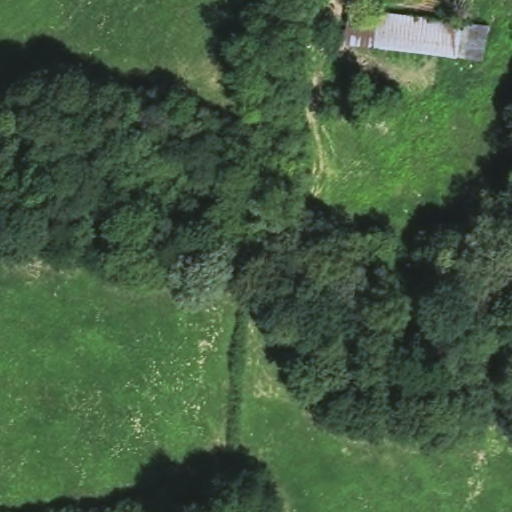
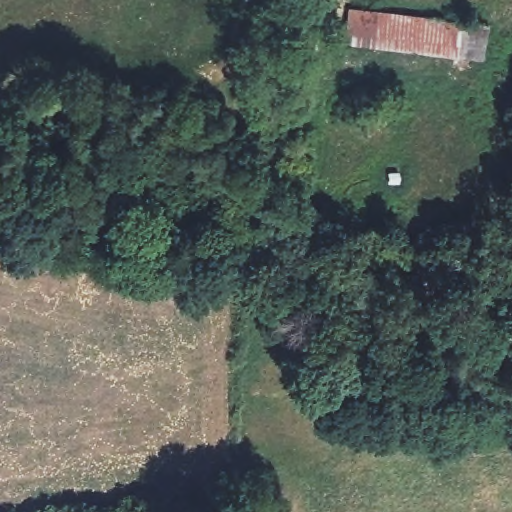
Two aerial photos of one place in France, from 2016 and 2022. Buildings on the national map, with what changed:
unchanged [(426,55),(339,45),(343,13),(487,31),(483,62),(426,55)]

